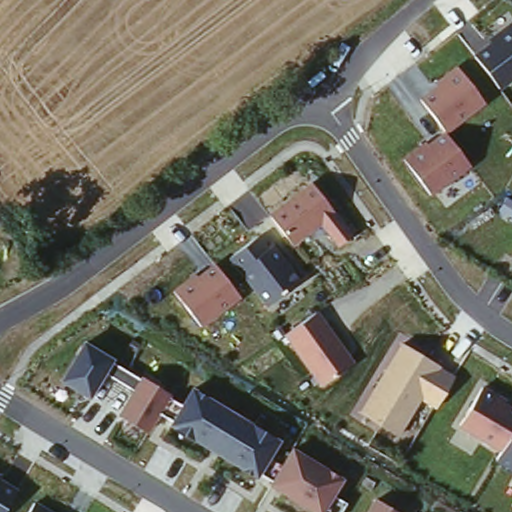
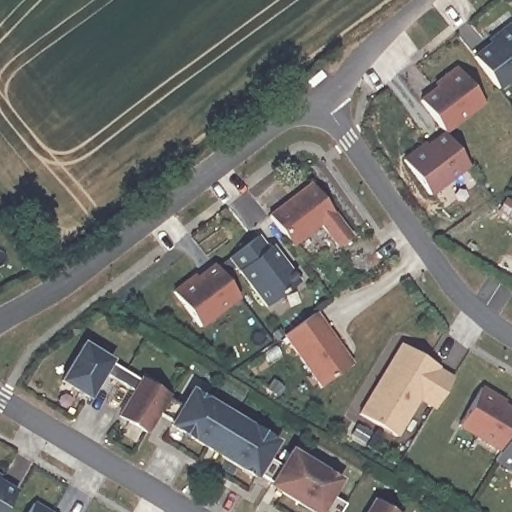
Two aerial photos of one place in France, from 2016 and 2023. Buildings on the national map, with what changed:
unchanged [(496,40),(492,36),(511,23),(512,24),(512,86),(503,93),(477,55),(496,40)]
unchanged [(421,100),(436,90),(435,85),(457,68),(486,108),(447,137),(443,131),(421,100)]
unchanged [(443,131),(447,137),(471,169),(431,195),(404,159),(443,131)]
unchanged [(311,184),(352,236),(342,244),(324,226),(295,249),(270,216),(311,184)]
unchanged [(257,237),(265,252),(273,247),(301,283),(268,308),(241,273),(230,259),(257,237)]
unchanged [(215,263),(241,302),(205,329),(174,293),(215,263)]
unchanged [(357,366),(321,388),(285,334),(319,309),(357,366)]
unchanged [(85,343),(113,360),(141,377),(168,394),(166,397),(183,406),(192,389),(280,443),(272,457),(284,466),(291,449),(343,480),(334,494),(347,506),(342,512),(324,512),(323,512),(311,512),(272,487),(275,481),(260,472),(255,478),(172,428),(174,422),(159,413),(148,434),(119,417),(135,388),(109,373),(90,399),(61,382),(85,343)]
unchanged [(399,343),(454,374),(437,412),(421,401),(400,437),(359,413),(399,343)]
unchanged [(483,386),(504,398),(502,402),(512,408),(512,432),(502,454),(461,428),(483,386)]
unchanged [(496,464),(502,454),(512,432),(512,474),(496,464)]
unchanged [(3,512),(0,512),(0,478),(17,488),(3,512)]
unchanged [(374,500),(394,512),(367,512),(374,500)]
unchanged [(35,505),(46,512),(31,512),(35,505)]

